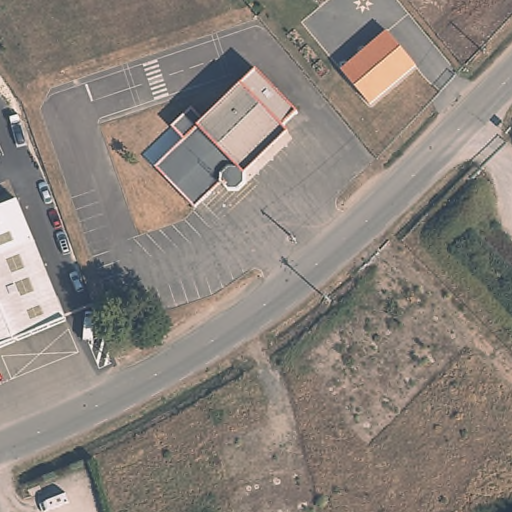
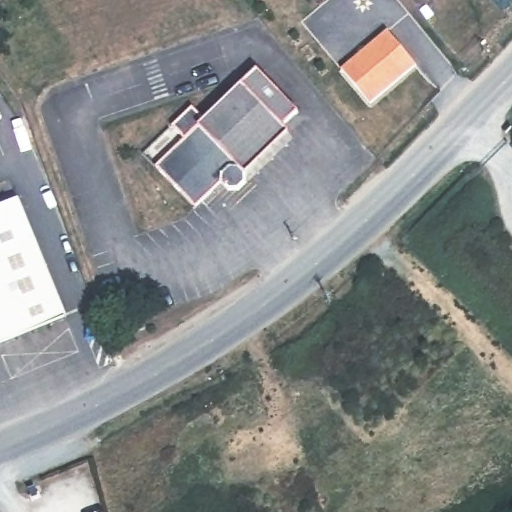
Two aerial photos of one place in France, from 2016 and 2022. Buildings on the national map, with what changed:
unchanged [(387,34),(416,68),(370,107),(341,72),(387,34)]
unchanged [(245,175),(245,185),(237,192),(228,192),(221,185),(194,210),(155,169),(256,70),(297,112),(282,127),(288,134),(245,175)]
unchanged [(0,348),(0,208),(18,200),(34,240),(67,320),(0,348)]

